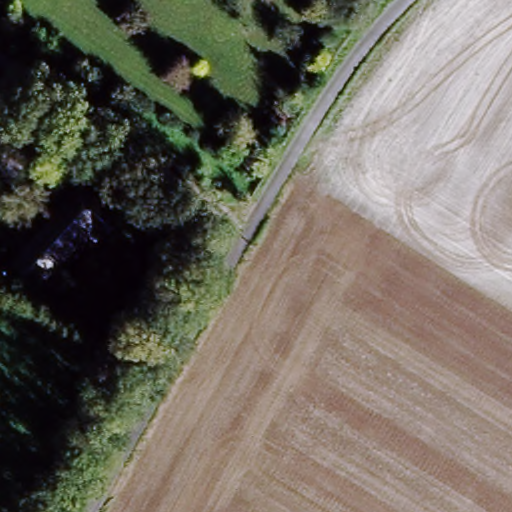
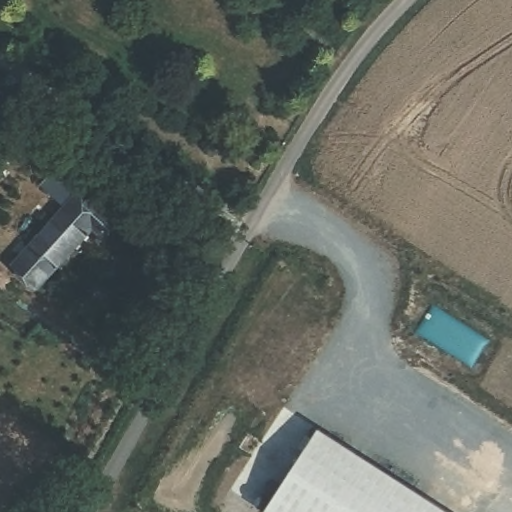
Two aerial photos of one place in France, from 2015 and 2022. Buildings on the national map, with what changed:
unchanged [(77,190),(115,224),(96,244),(88,236),(56,272),(41,260),(28,272),(15,261),(77,190)]
new [(267,512),(319,429),(450,512),(267,512)]

